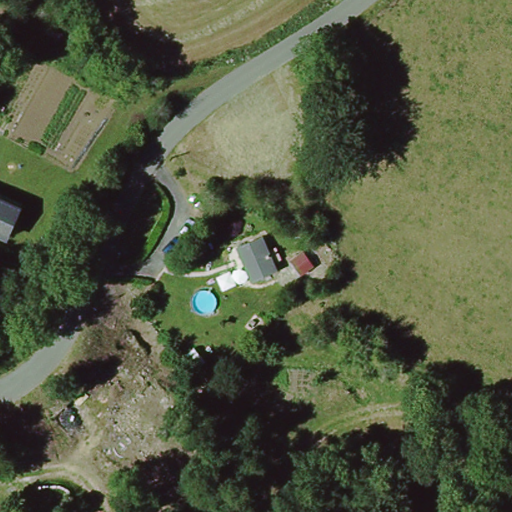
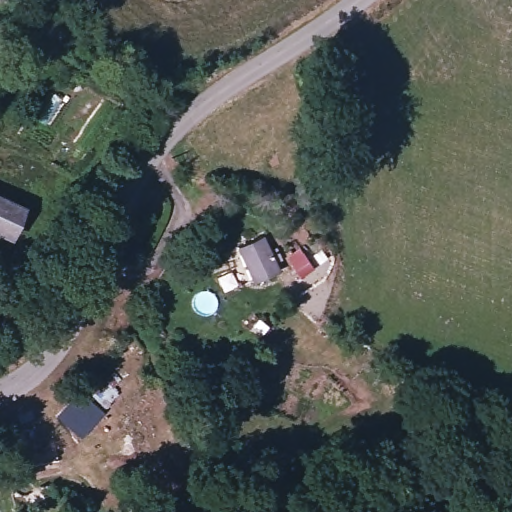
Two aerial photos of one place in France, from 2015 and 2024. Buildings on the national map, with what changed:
unchanged [(0,226),(0,188),(19,197),(6,229),(0,226)]
unchanged [(281,262),(248,276),(238,254),(271,239),(281,262)]
unchanged [(324,258),(295,274),(286,258),(315,242),(324,258)]

